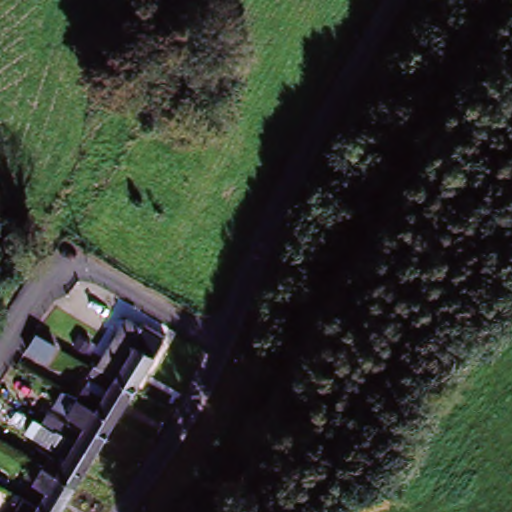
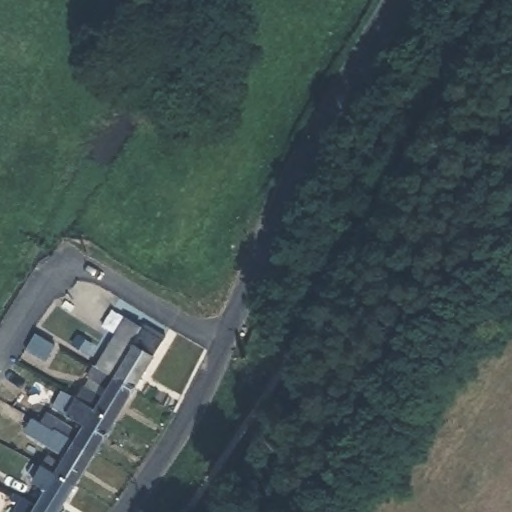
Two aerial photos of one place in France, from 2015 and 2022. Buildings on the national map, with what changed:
unchanged [(47,496),(34,488),(43,472),(50,462),(62,470),(70,458),(50,447),(37,438),(42,428),(48,418),(82,438),(87,431),(60,414),(70,399),(77,404),(84,393),(103,404),(109,393),(90,382),(97,370),(100,371),(128,325),(135,328),(164,347),(136,394),(116,427),(96,460),(77,492),(64,512),(38,512),(37,511),(47,496)]
unchanged [(37,336),(53,347),(45,362),(27,351),(37,336)]
unchanged [(37,511),(38,512),(20,512),(25,504),(37,511)]

